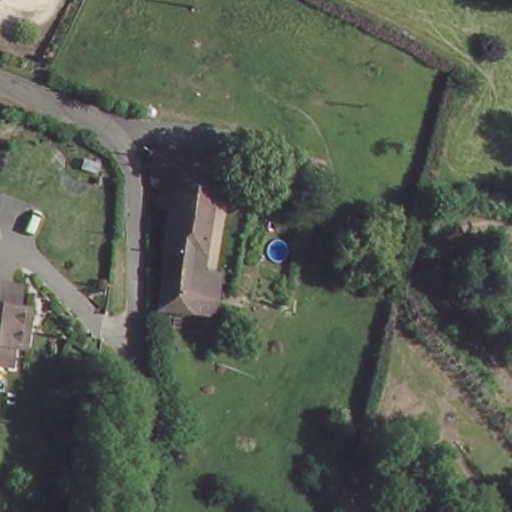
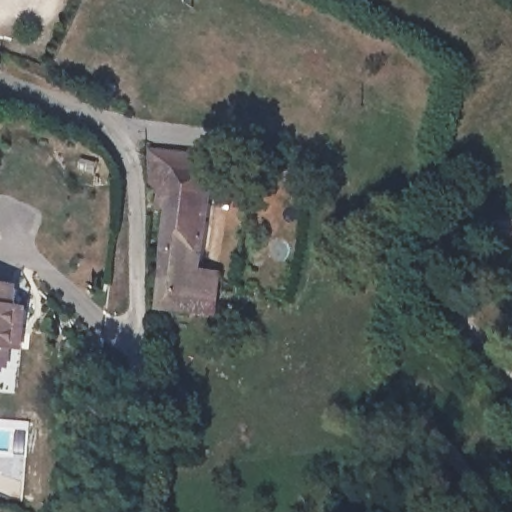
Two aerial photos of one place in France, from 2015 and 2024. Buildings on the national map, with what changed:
unchanged [(182,163),(178,190),(145,184),(145,173),(151,142),(221,152),(218,168),(182,163)]
unchanged [(201,256),(188,328),(158,323),(178,190),(182,163),(218,168),(201,256)]
unchanged [(238,264),(224,333),(188,328),(201,256),(238,264)]
unchanged [(11,363),(0,362),(0,281),(19,282),(18,303),(29,304),(27,337),(25,364),(11,363)]

